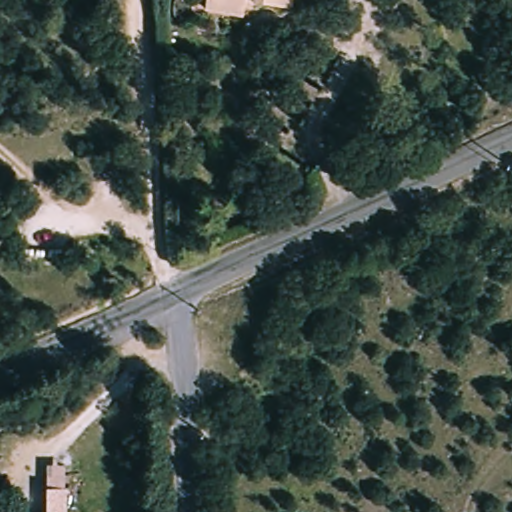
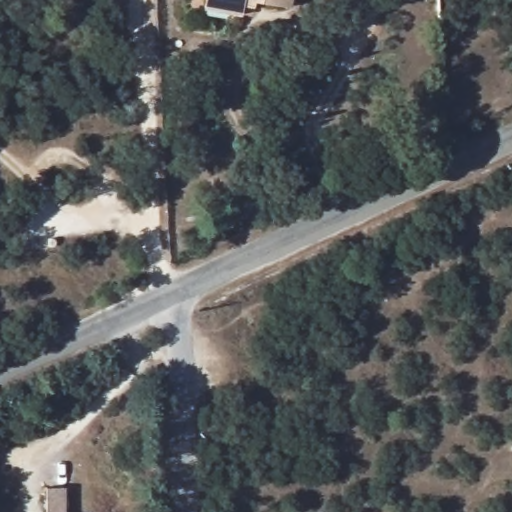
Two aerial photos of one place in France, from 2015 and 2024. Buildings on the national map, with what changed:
unchanged [(203,0),(292,0),(290,11),(238,3),(237,7),(235,17),(202,10),(203,0)]
unchanged [(40,495),(60,495),(60,512),(40,512),(40,495)]

